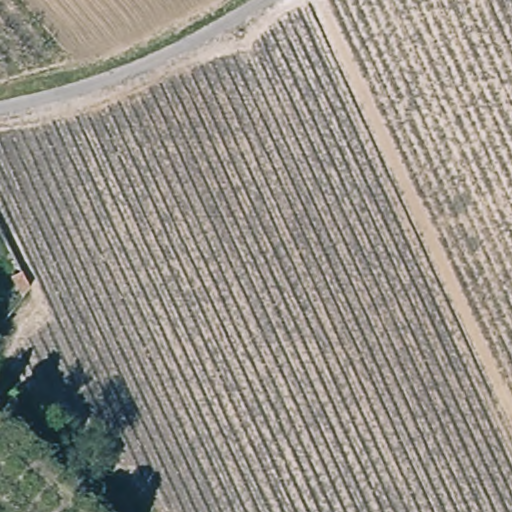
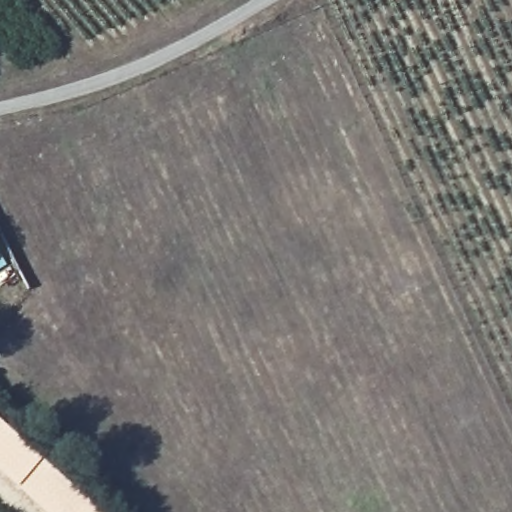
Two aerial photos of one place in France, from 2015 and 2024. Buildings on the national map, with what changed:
new [(44,458),(103,512),(49,512),(0,467),(0,419),(44,458)]

